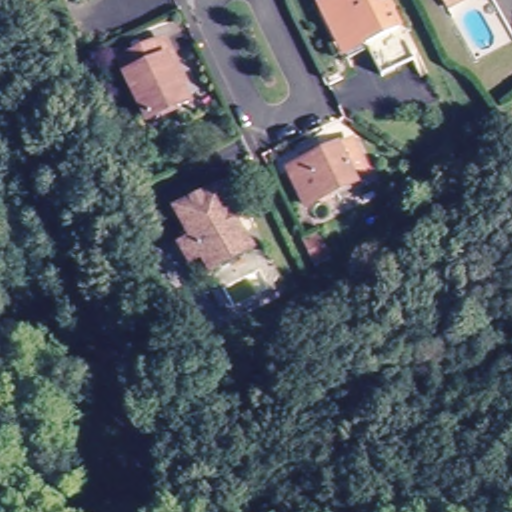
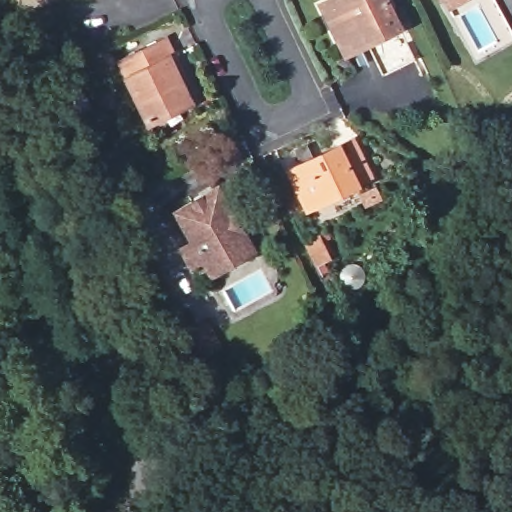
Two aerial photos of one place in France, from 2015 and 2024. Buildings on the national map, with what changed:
unchanged [(317,0),(383,0),(408,50),(376,65),(360,35),(338,45),(334,35),(317,0)]
unchanged [(443,15),(473,1),(496,47),(466,60),(443,15)]
unchanged [(184,101),(146,120),(117,61),(161,40),(177,70),(170,75),(176,88),(184,101)]
unchanged [(362,182),(300,212),(280,175),(343,145),(362,182)]
unchanged [(201,272),(193,257),(178,265),(170,247),(184,240),(167,209),(210,189),(222,181),(239,213),(226,220),(242,251),(201,272)]
unchanged [(310,241),(321,263),(309,269),(298,247),(310,241)]

